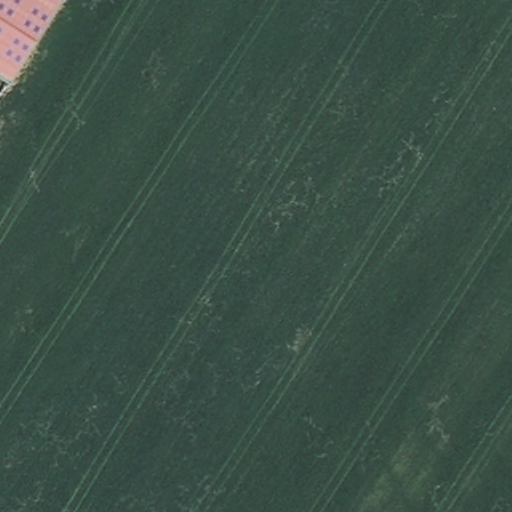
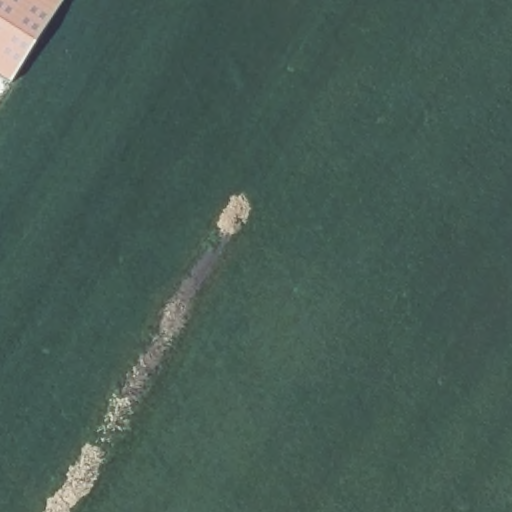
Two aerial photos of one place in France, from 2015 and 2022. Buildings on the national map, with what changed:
unchanged [(0,74),(0,0),(64,0),(12,81),(0,74)]

